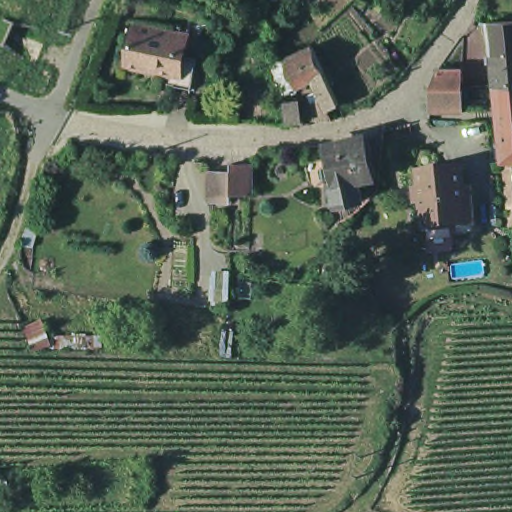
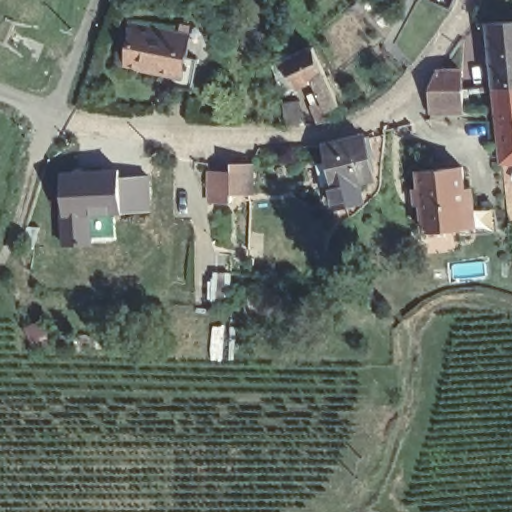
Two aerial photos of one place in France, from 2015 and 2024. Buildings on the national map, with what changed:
unchanged [(494,79),(489,17),(502,16),(512,15),(512,78),(494,79)]
unchanged [(172,74),(173,68),(120,59),(127,17),(175,26),(184,27),(180,50),(194,52),(189,77),(172,74)]
unchanged [(309,88),(319,84),(314,74),(297,81),(295,79),(286,82),(274,57),(284,55),(313,41),(315,44),(326,68),(340,98),(328,103),(332,113),(317,115),(309,88)]
unchanged [(511,222),(507,192),(504,155),(502,155),(494,79),(512,78),(512,222),(511,222)]
unchanged [(430,116),(429,99),(437,80),(462,80),(462,97),(463,115),(430,116)]
unchanged [(290,117),(286,95),(301,92),(305,114),(290,117)]
unchanged [(332,190),(327,169),(334,167),(327,143),(326,137),(356,131),(365,162),(354,165),(359,184),(332,190)]
unchanged [(230,199),(208,199),(207,170),(230,170),(230,162),(251,162),(251,192),(232,192),(232,199),(230,199)]
unchanged [(462,165),(465,188),(468,224),(457,225),(424,229),(417,170),(462,165)]
new [(57,169),(119,166),(120,175),(122,213),(90,216),(92,245),(58,246),(58,216),(57,169)]
new [(150,173),(152,211),(122,213),(120,175),(150,173)]
unchanged [(32,247),(19,244),(27,224),(37,227),(32,247)]
unchanged [(227,305),(211,304),(212,270),(229,271),(229,272),(227,305)]
unchanged [(49,343),(32,350),(24,325),(40,319),(49,343)]

